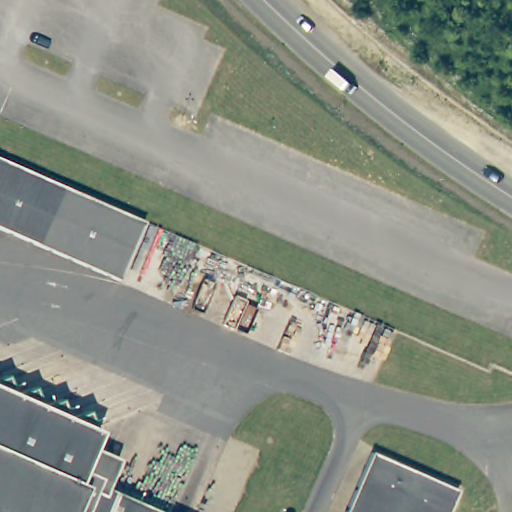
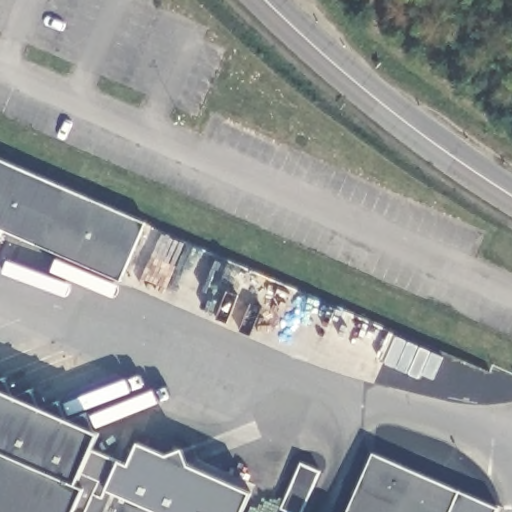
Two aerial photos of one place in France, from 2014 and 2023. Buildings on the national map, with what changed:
unchanged [(0,208),(0,158),(18,167),(0,208)]
unchanged [(48,250),(0,229),(0,208),(18,167),(73,191),(48,250)]
unchanged [(152,225),(126,283),(48,250),(73,191),(152,225)]
unchanged [(93,452),(113,462),(106,477),(185,512),(0,512),(0,394),(99,440),(93,452)]
new [(165,455),(182,448),(188,465),(250,492),(241,512),(185,512),(111,478),(118,461),(128,465),(138,442),(165,455)]
unchanged [(460,496),(453,512),(349,512),(373,457),(460,496)]
new [(498,508),(497,512),(453,512),(460,496),(498,508)]

